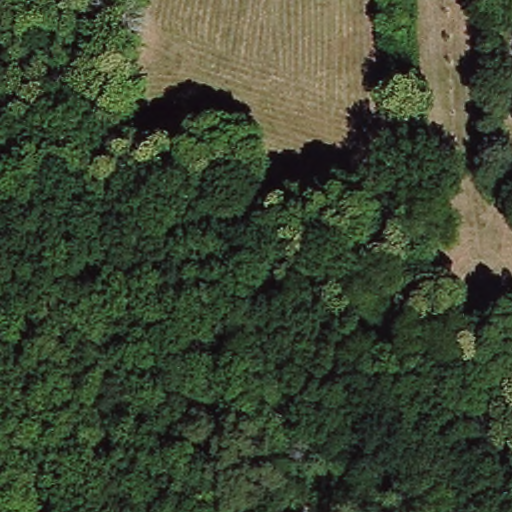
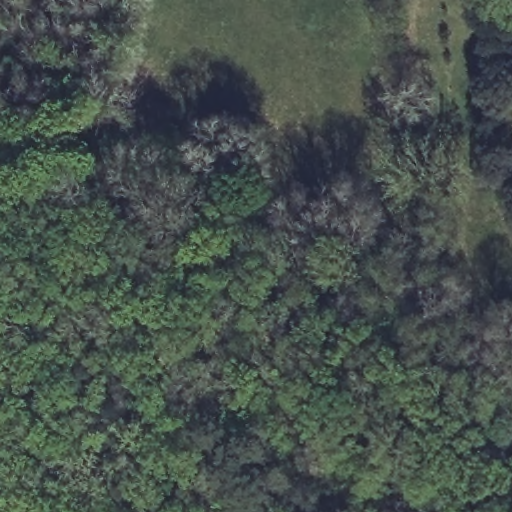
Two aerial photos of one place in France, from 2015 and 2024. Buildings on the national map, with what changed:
[]

